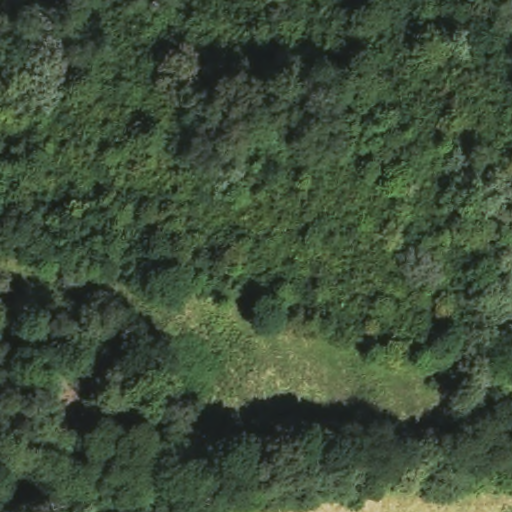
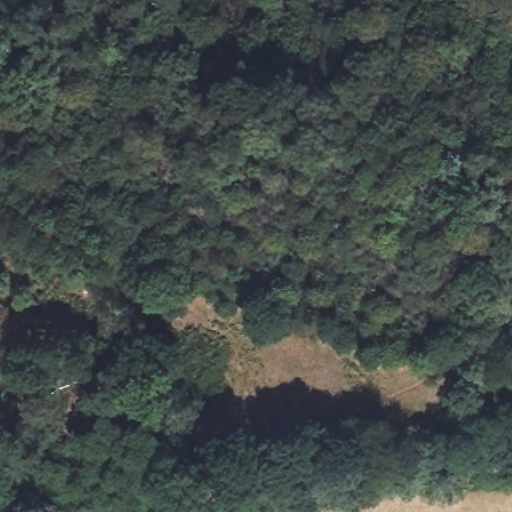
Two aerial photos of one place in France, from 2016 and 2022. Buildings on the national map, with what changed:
[]

